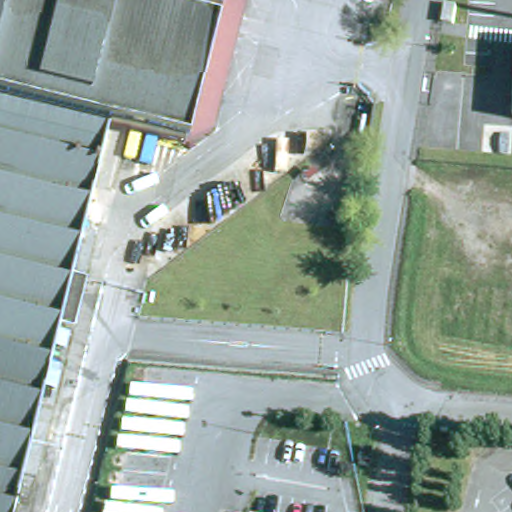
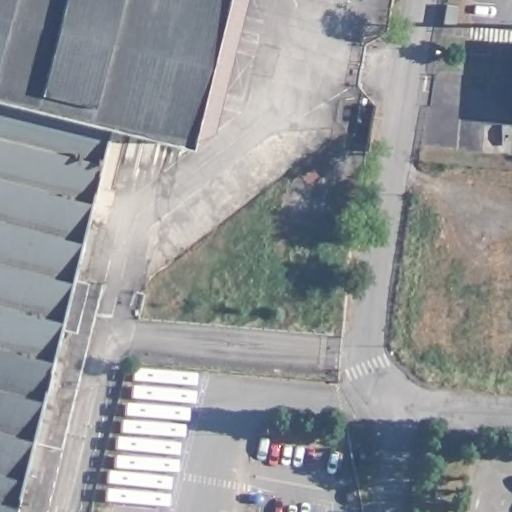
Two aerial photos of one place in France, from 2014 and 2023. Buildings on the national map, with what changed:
unchanged [(106,126),(62,299),(8,512),(0,512),(0,0),(216,0),(180,145),(106,126)]
unchanged [(377,453),(374,470),(365,468),(367,452),(377,453)]

